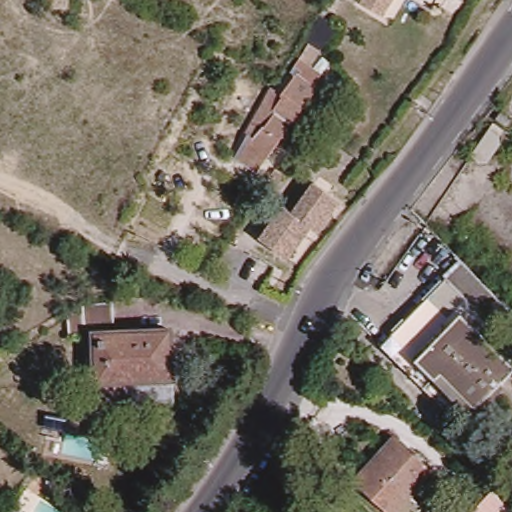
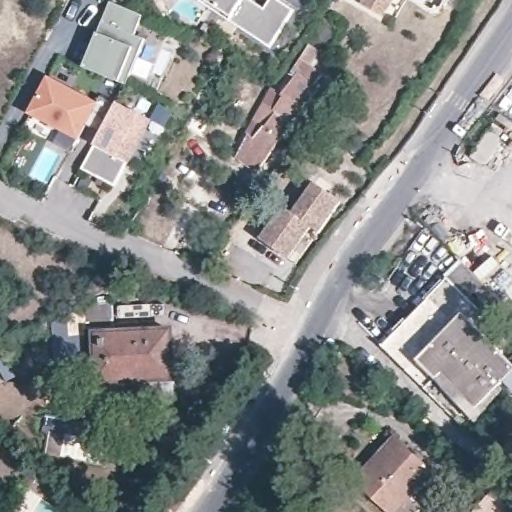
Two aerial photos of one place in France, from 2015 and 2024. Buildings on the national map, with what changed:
new [(296,9),(272,46),(198,0),(282,0),(296,9)]
unchanged [(362,0),(397,0),(384,21),(359,6),(362,0)]
unchanged [(404,1),(402,0),(405,0),(404,1)]
new [(107,4),(138,18),(133,31),(144,37),(123,85),(78,67),(107,4)]
unchanged [(305,92),(309,95),(253,176),(238,165),(246,144),(253,135),(245,131),(271,87),(280,92),(276,99),(289,80),(284,76),(301,49),(311,55),(299,71),(313,81),(305,92)]
new [(43,73),(93,100),(74,137),(23,110),(43,73)]
new [(89,167),(98,150),(88,144),(110,101),(149,121),(126,164),(117,181),(89,167)]
unchanged [(509,123),(506,128),(495,120),(499,115),(509,123)]
unchanged [(486,165),(478,166),(469,159),(492,125),(503,132),(498,139),(501,145),(486,165)]
unchanged [(283,205),(291,212),(313,182),(339,202),(306,242),(304,240),(290,260),(259,239),(283,205)]
unchanged [(451,277),(512,341),(512,386),(460,424),(388,347),(451,277)]
unchanged [(118,325),(89,327),(89,333),(71,333),(70,308),(85,307),(85,300),(116,300),(118,325)]
unchanged [(177,400),(103,402),(99,332),(115,332),(116,342),(173,340),(177,400)]
unchanged [(428,512),(394,512),(365,483),(403,444),(436,475),(414,498),(428,512)]
unchanged [(486,512),(498,498),(512,512),(486,512)]

